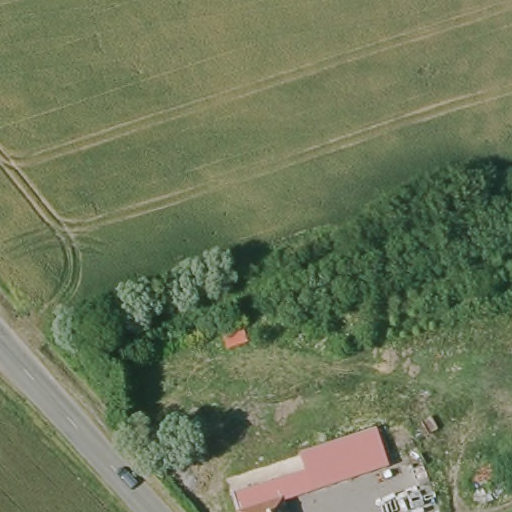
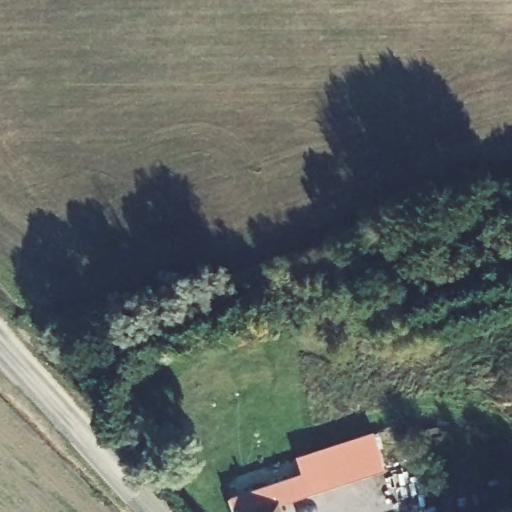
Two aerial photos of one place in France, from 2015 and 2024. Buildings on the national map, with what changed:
unchanged [(302,450),(377,425),(386,453),(389,462),(313,487),(290,495),(283,497),(283,498),(288,512),(241,512),(234,490),(307,466),(302,450)]

